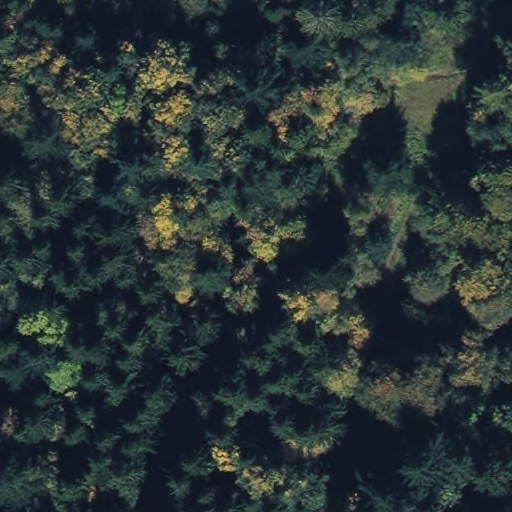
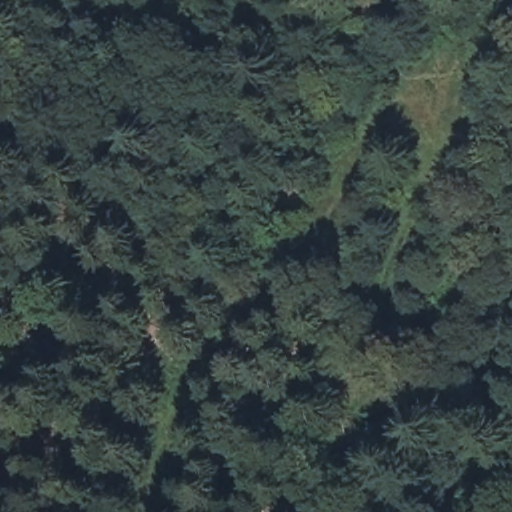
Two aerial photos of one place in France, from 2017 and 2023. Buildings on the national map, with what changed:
[]

